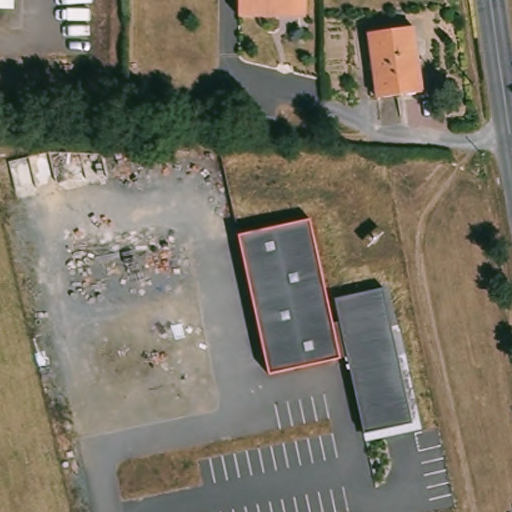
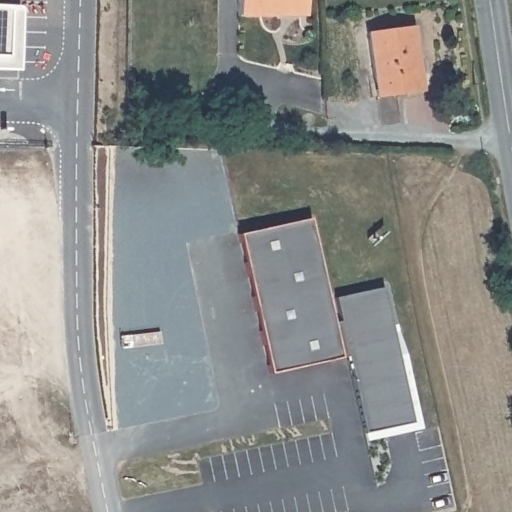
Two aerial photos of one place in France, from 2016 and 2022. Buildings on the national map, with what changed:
unchanged [(282,13),(242,13),(242,0),(309,0),(309,9),(309,13),(282,13)]
new [(21,71),(0,70),(0,8),(22,9),(21,71)]
unchanged [(416,22),(425,85),(382,91),(372,29),(416,22)]
unchanged [(341,359),(271,374),(239,233),(313,216),(336,323),(342,322),(337,297),(383,288),(391,325),(402,322),(426,428),(367,439),(366,430),(350,355),(341,359)]

